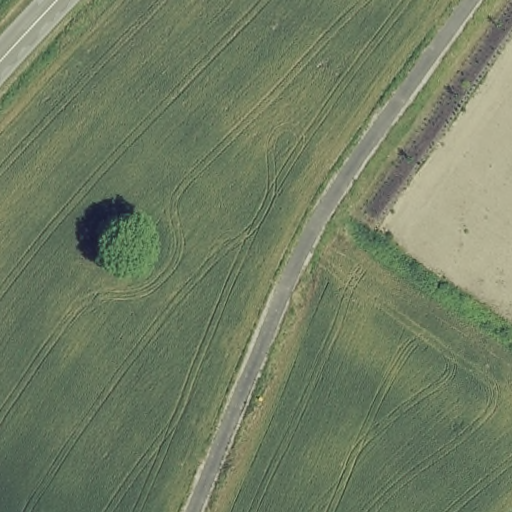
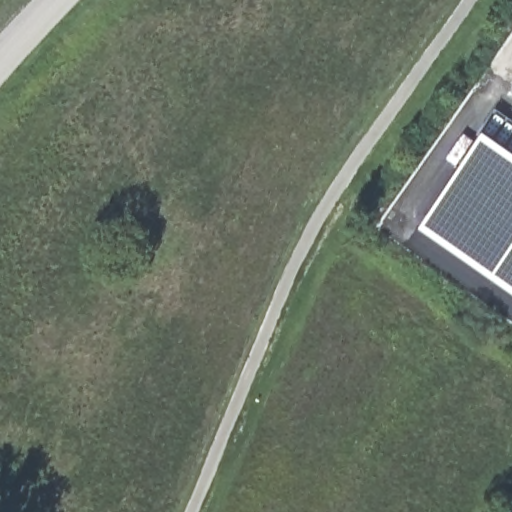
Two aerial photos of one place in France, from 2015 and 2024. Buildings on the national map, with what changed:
new [(512,294),(419,229),(485,139),(479,134),(496,113),(512,124),(512,294)]

